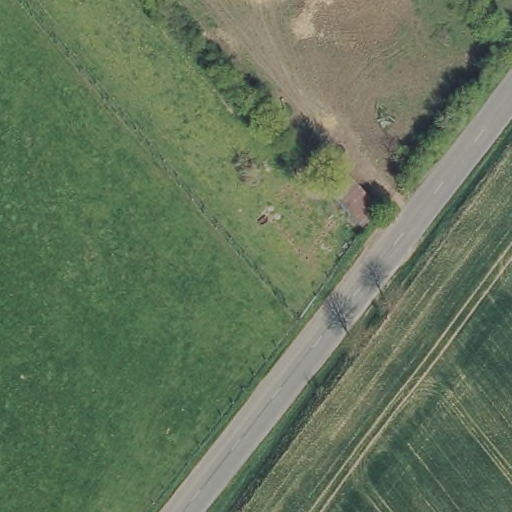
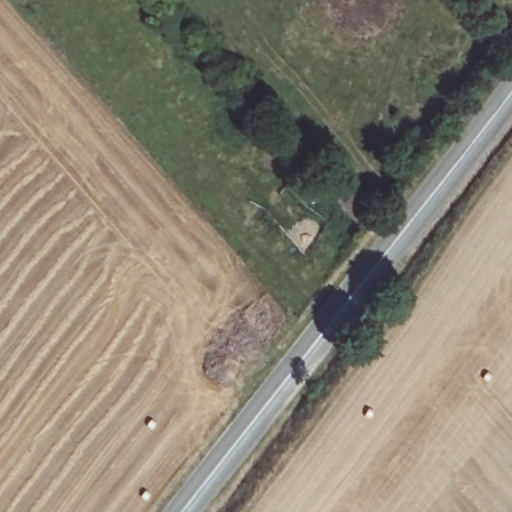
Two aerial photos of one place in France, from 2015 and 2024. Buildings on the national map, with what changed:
unchanged [(372,205),(360,218),(330,185),(343,172),(372,205)]

